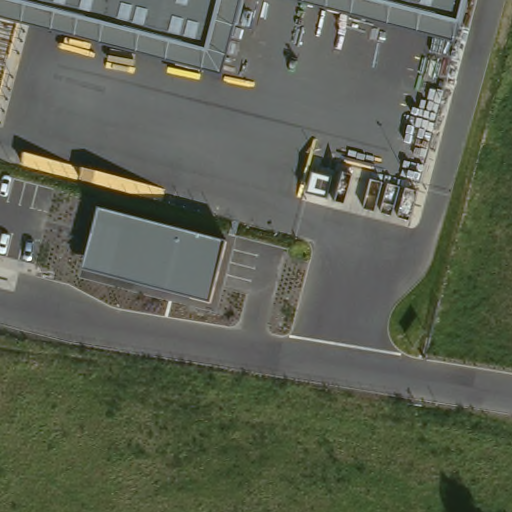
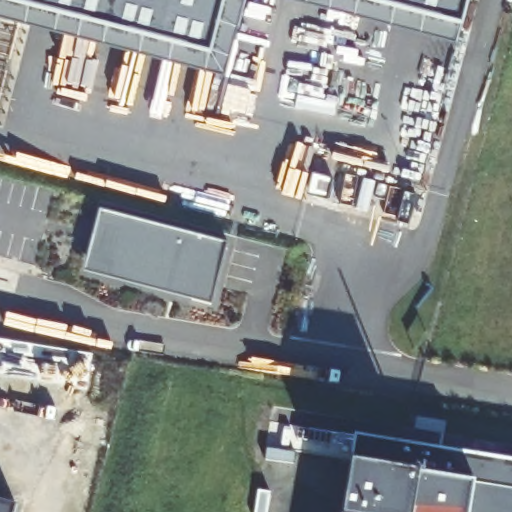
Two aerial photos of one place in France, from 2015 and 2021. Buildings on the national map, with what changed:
unchanged [(0,20),(0,0),(242,0),(222,77),(0,20)]
unchanged [(455,44),(283,0),(466,0),(460,26),(455,44)]
unchanged [(225,242),(210,303),(84,270),(99,210),(225,242)]
new [(269,426),(352,439),(348,464),(265,451),(269,426)]
new [(348,464),(352,439),(512,464),(512,512),(341,512),(348,464)]
new [(12,512),(0,512),(0,496),(15,500),(12,512)]

